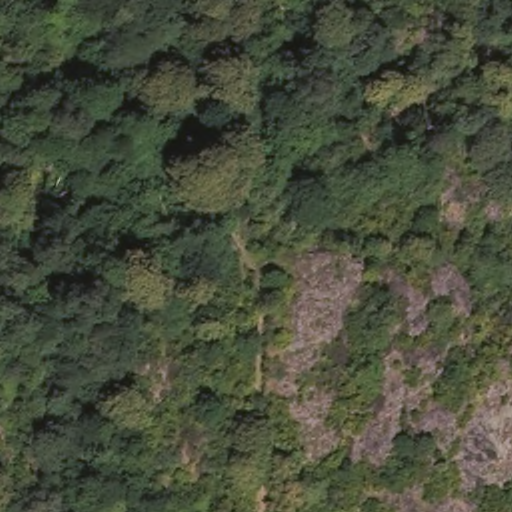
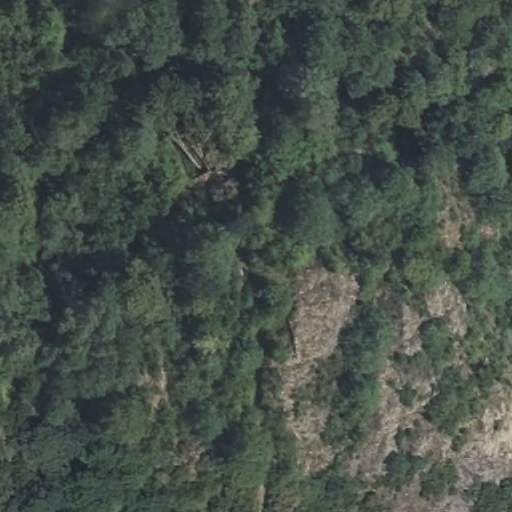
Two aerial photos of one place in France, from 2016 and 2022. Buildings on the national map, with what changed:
unchanged [(134,200),(164,185),(183,225),(149,239),(134,200)]

